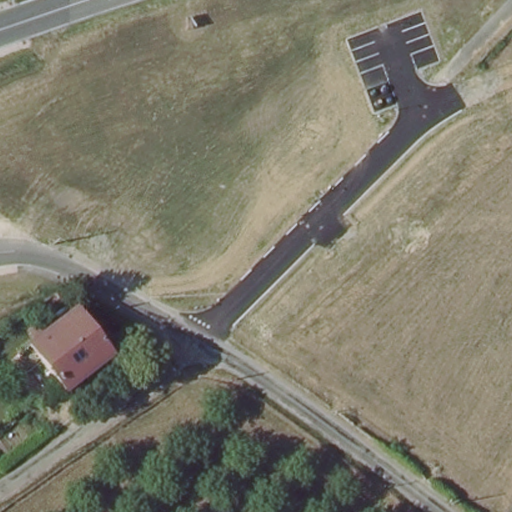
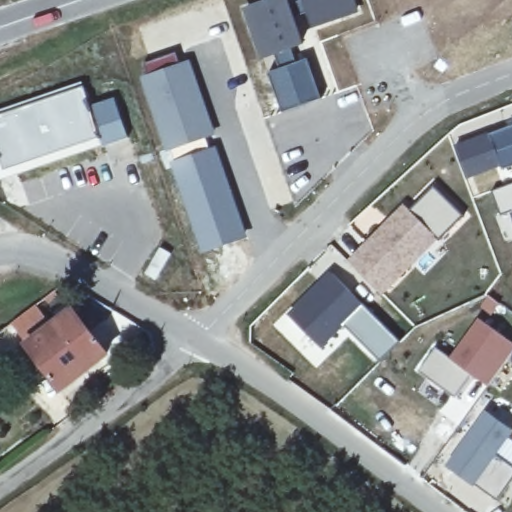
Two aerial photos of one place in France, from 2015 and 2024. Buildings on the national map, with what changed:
new [(266,0),(287,0),(302,46),(291,50),(296,64),(306,60),(321,100),(281,115),(266,75),(278,70),(274,59),(261,64),(241,8),(266,0)]
new [(357,13),(311,28),(300,0),(353,0),(357,13)]
new [(145,77),(141,66),(177,55),(181,64),(188,60),(216,137),(166,154),(138,79),(145,77)]
new [(0,111),(80,83),(82,89),(99,138),(103,145),(0,181),(0,111)]
new [(512,124),(512,164),(502,167),(489,131),(512,124)]
new [(489,131),(502,167),(467,179),(453,144),(489,131)]
new [(216,145),(248,237),(201,252),(169,159),(216,145)]
new [(512,183),(512,209),(509,211),(501,214),(492,190),(512,183)]
new [(402,206),(409,211),(433,186),(463,217),(439,244),(437,242),(383,298),(346,262),(402,206)]
new [(512,209),(512,220),(509,211),(512,209)]
new [(329,267),(364,304),(344,325),(321,347),(286,312),(329,267)]
new [(364,304),(400,340),(379,360),(344,325),(364,304)]
unchanged [(68,307),(108,356),(60,393),(21,343),(68,307)]
new [(435,350),(448,361),(476,320),(512,345),(512,351),(488,387),(468,375),(453,398),(419,373),(435,350)]
unchanged [(10,373),(0,358),(0,350),(7,344),(22,365),(10,373)]
new [(484,412),(512,432),(496,455),(512,468),(512,479),(499,501),(476,486),(473,491),(443,468),(484,412)]

